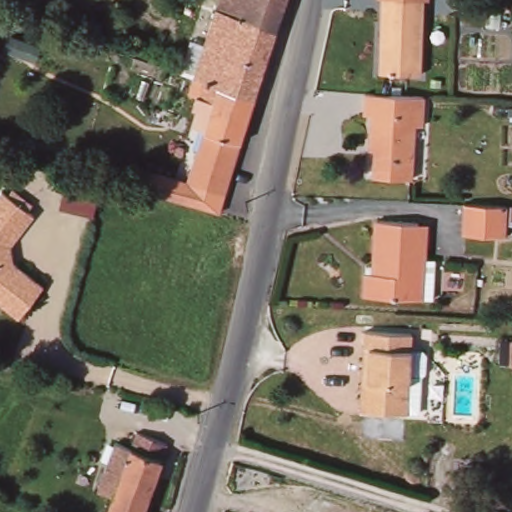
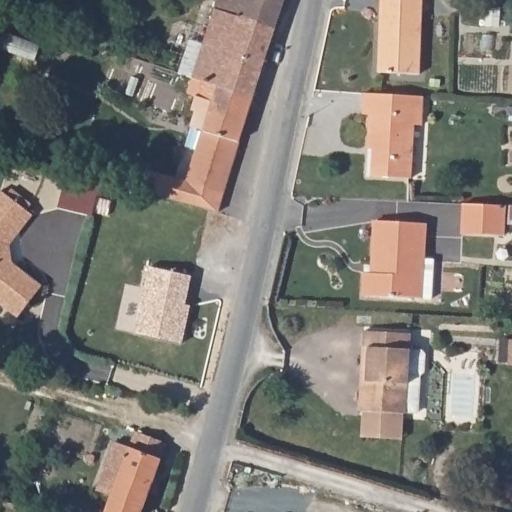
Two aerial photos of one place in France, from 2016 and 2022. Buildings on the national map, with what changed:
unchanged [(208,35),(218,0),(282,0),(256,87),(222,77),(207,73),(184,65),(194,31),(208,35)]
unchanged [(420,0),(417,72),(373,70),(378,0),(424,0),(424,1),(420,0)]
unchanged [(222,77),(256,87),(254,95),(227,181),(224,180),(219,200),(161,185),(164,172),(166,165),(196,172),(220,92),(202,87),(207,73),(222,77)]
unchanged [(419,121),(412,121),(409,178),(368,176),(371,150),(363,150),(365,118),(357,117),(359,98),(420,100),(419,121)]
unchanged [(29,217),(9,242),(11,261),(39,286),(15,318),(0,306),(0,193),(29,217)]
unchanged [(466,203),(507,205),(512,206),(512,224),(505,224),(504,237),(463,235),(466,203)]
new [(85,207),(119,215),(111,247),(77,239),(85,207)]
unchanged [(412,300),(363,296),(365,274),(372,275),(376,222),(417,225),(426,225),(425,237),(423,263),(422,280),(421,300),(412,300)]
new [(192,275),(189,293),(186,303),(191,304),(183,342),(137,332),(151,265),(192,275)]
unchanged [(360,345),(361,328),(398,331),(397,347),(413,348),(412,373),(396,371),(393,410),(362,407),(356,407),(360,345)]
unchanged [(125,473),(111,468),(112,465),(115,456),(119,442),(120,442),(135,447),(140,432),(171,443),(145,512),(111,512),(125,473)]

